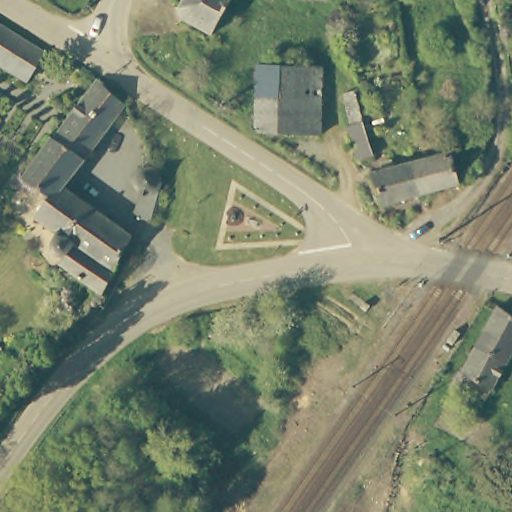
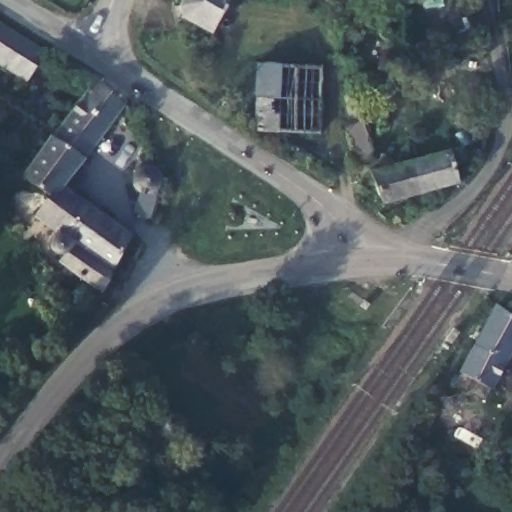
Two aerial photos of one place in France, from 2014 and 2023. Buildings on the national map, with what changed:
unchanged [(185,20),(181,7),(184,0),(229,0),(212,32),(185,20)]
unchanged [(335,2),(288,0),(352,0),(335,2)]
unchanged [(46,48),(27,79),(0,63),(0,19),(46,48)]
unchanged [(260,98),(261,63),(322,65),(321,100),(260,98)]
unchanged [(66,186),(132,237),(102,296),(56,263),(54,253),(52,239),(31,224),(46,199),(18,179),(52,140),(102,80),(129,105),(66,186)]
unchanged [(341,86),(352,83),(361,114),(373,145),(371,147),(358,153),(358,152),(345,121),(350,119),(341,86)]
unchanged [(321,100),(321,102),(320,133),(258,131),(260,98),(321,100)]
unchanged [(452,152),(461,182),(420,193),(414,162),(452,152)]
unchanged [(144,193),(142,192),(137,189),(134,185),(132,180),(131,174),(132,169),(136,164),(140,161),(145,158),(151,158),(156,159),(160,163),(162,168),(164,173),(164,179),(162,184),(157,189),(157,200),(142,216),(136,211),(144,193)]
unchanged [(376,172),(414,162),(420,193),(388,202),(384,203),(383,203),(376,172)]
unchanged [(500,302),(512,309),(512,353),(495,386),(465,370),(500,302)]

